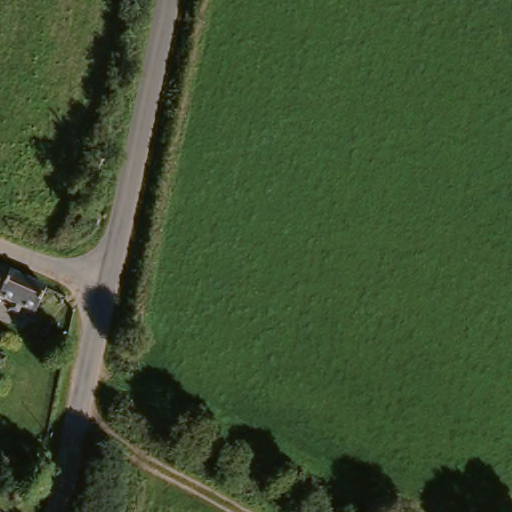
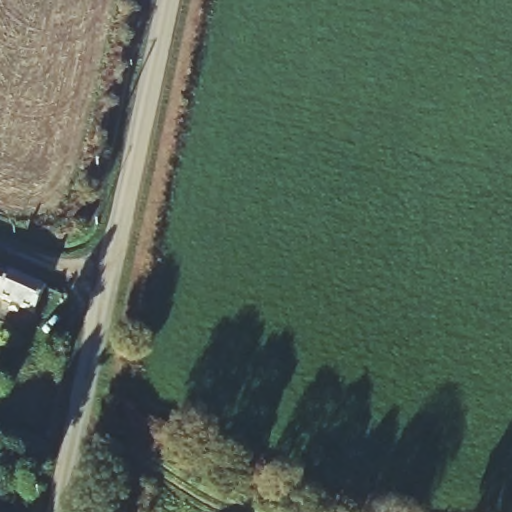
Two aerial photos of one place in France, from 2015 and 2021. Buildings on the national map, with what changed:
unchanged [(32,313),(0,298),(0,271),(43,292),(32,313)]

